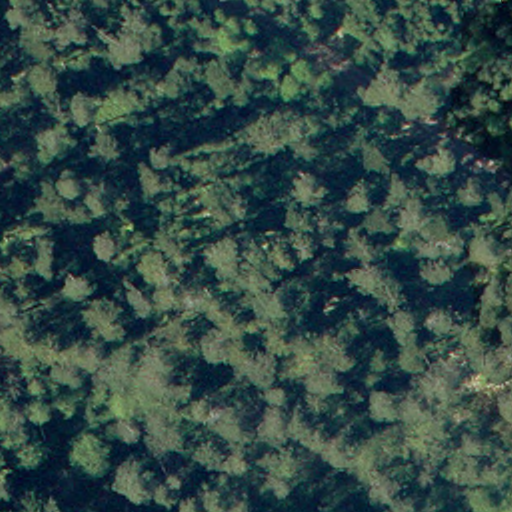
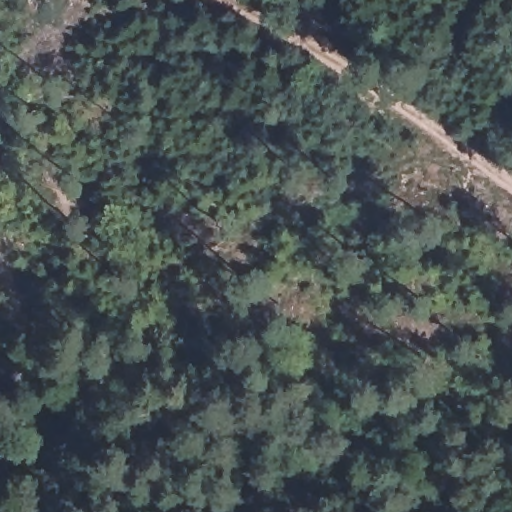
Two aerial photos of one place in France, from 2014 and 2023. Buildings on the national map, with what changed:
[]

